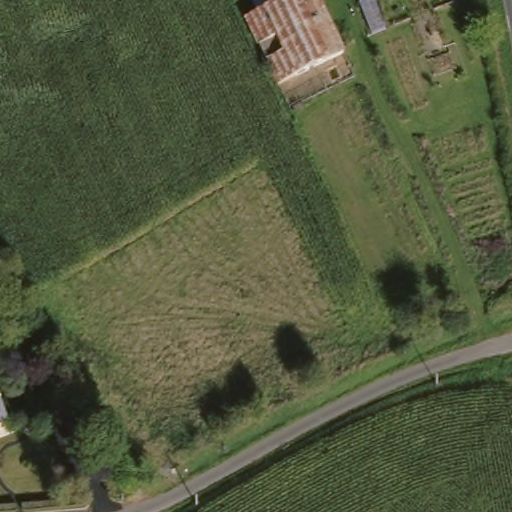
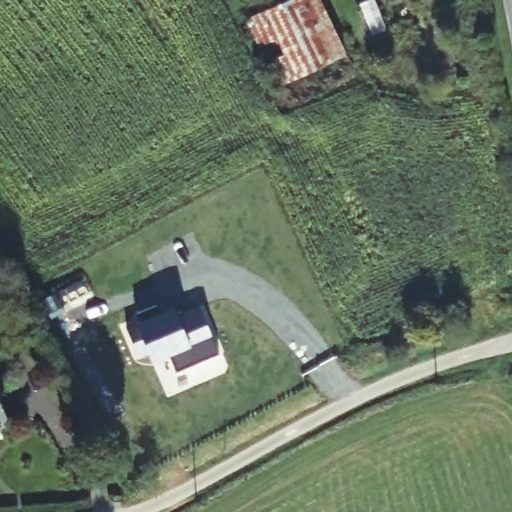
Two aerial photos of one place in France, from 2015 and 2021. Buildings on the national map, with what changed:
unchanged [(276,84),(246,21),(291,0),(318,0),(343,52),(276,84)]
unchanged [(258,0),(251,4),(249,0),(258,0)]
new [(159,314),(173,307),(178,316),(200,308),(219,354),(176,370),(169,353),(153,359),(149,351),(139,354),(127,327),(141,322),(136,312),(155,304),(159,314)]
unchanged [(0,422),(0,420),(1,422),(0,422)]

